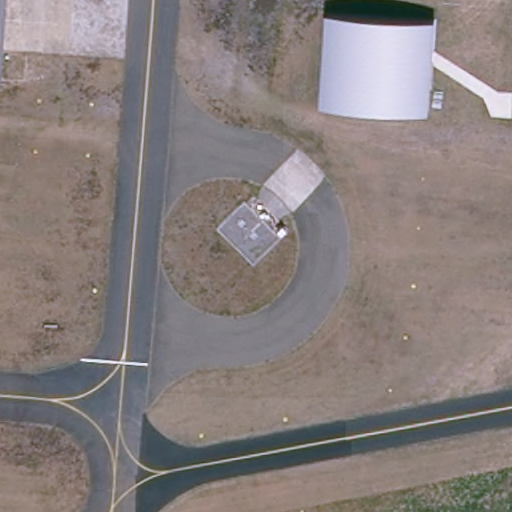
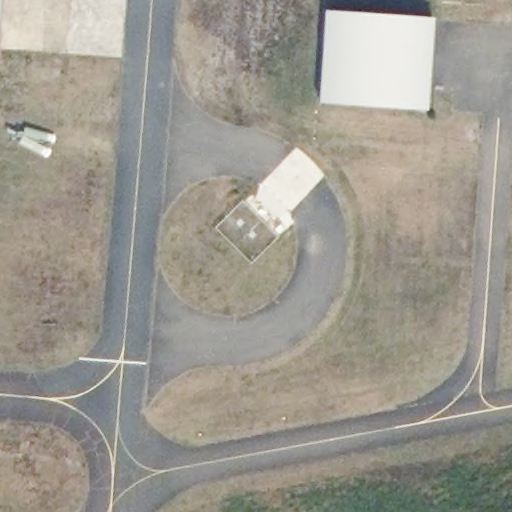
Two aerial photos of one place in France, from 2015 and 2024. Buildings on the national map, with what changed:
unchanged [(426,109),(311,102),(317,7),(432,14),(426,109)]

